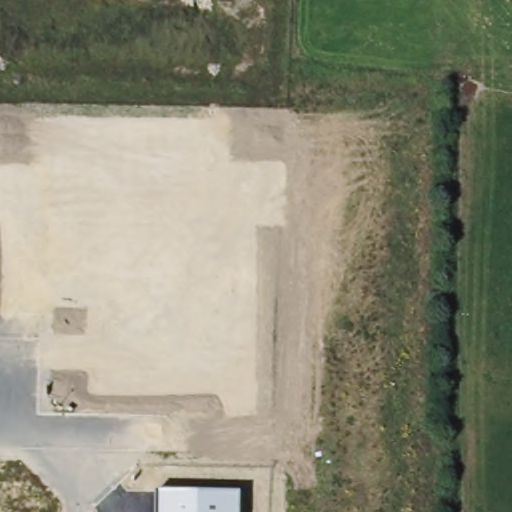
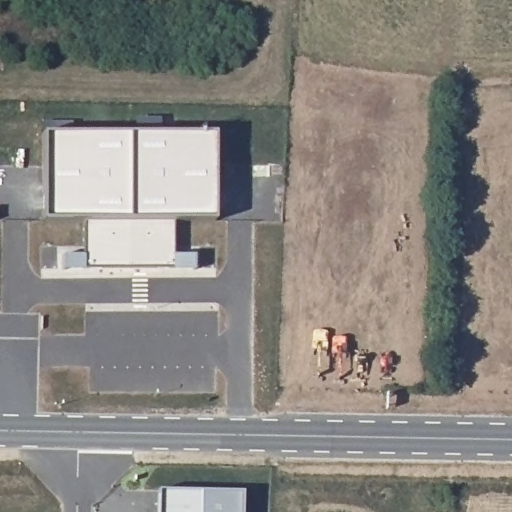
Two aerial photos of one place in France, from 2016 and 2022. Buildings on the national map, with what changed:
new [(42,134),(128,134),(129,268),(83,268),(83,222),(42,222),(42,134)]
new [(215,134),(215,222),(174,222),(174,268),(129,268),(128,134),(215,134)]
unchanged [(243,492),(243,512),(158,512),(158,492),(243,492)]

